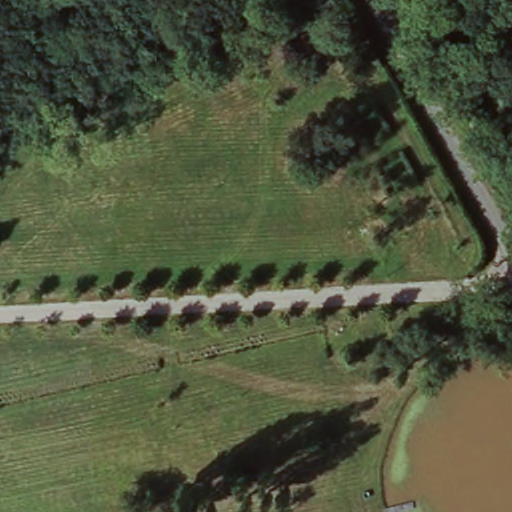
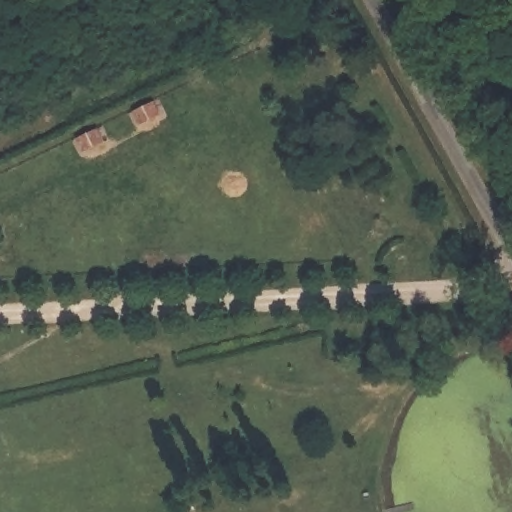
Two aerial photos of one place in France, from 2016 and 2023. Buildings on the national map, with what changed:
[]

